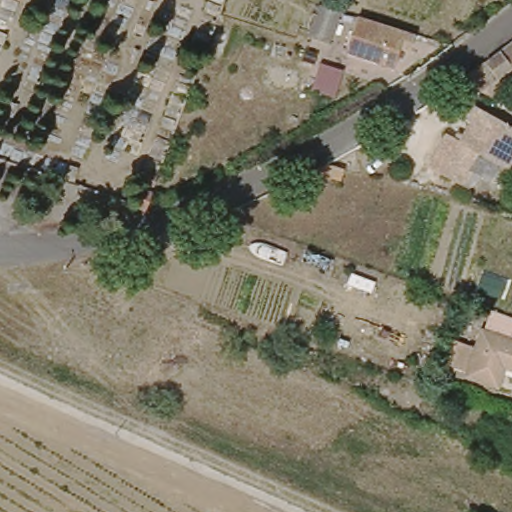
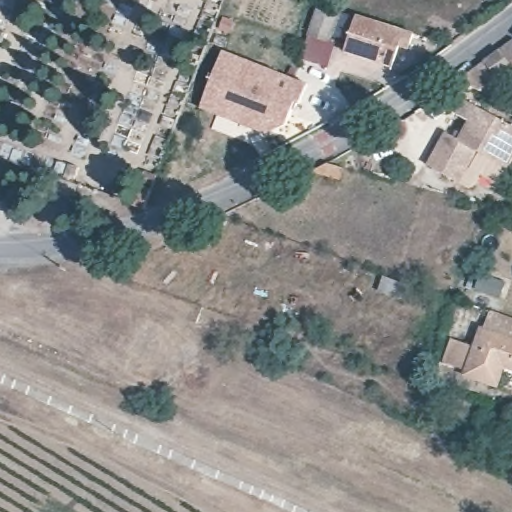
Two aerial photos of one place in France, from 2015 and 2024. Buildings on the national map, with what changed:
new [(340,12),(330,43),(336,44),(329,68),(301,58),(317,5),(340,12)]
demolished [(348,12),(341,37),(321,32),(328,6),(348,12)]
unchanged [(368,19),(408,32),(396,64),(357,51),(368,19)]
unchanged [(474,72),(512,42),(512,70),(496,82),(474,72)]
new [(300,106),(295,104),(287,127),(268,136),(201,110),(222,52),(307,84),(300,106)]
unchanged [(512,128),(512,155),(505,167),(475,152),(466,169),(458,182),(428,166),(446,134),(458,141),(469,122),(455,116),(464,100),(512,128)]
unchanged [(312,172),(329,164),(347,169),(343,180),(312,172)]
unchanged [(490,326),(512,333),(512,357),(511,357),(504,378),(473,367),(474,364),(455,357),(462,334),(485,341),(490,326)]

